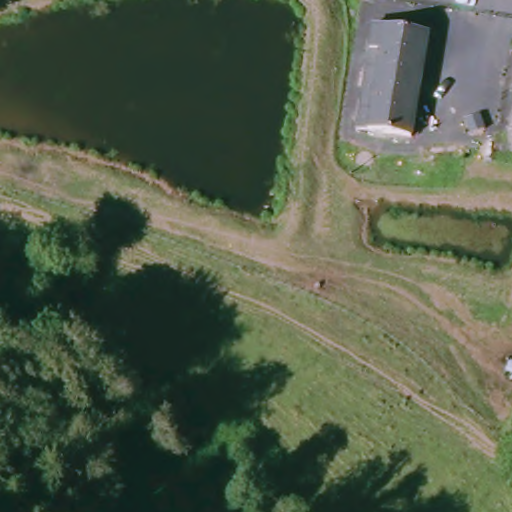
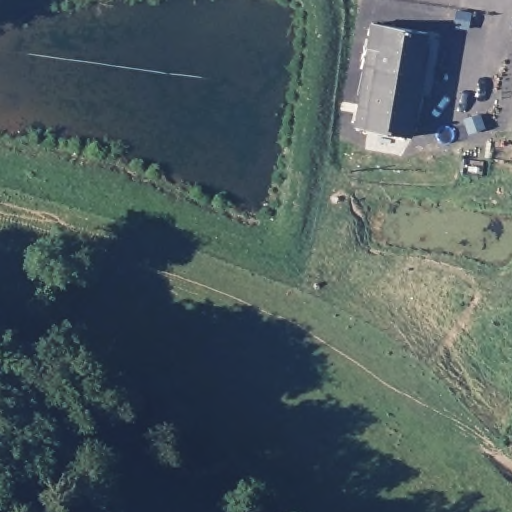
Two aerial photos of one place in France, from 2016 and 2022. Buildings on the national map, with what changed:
unchanged [(412,137),(365,129),(384,27),(432,34),(412,137)]

